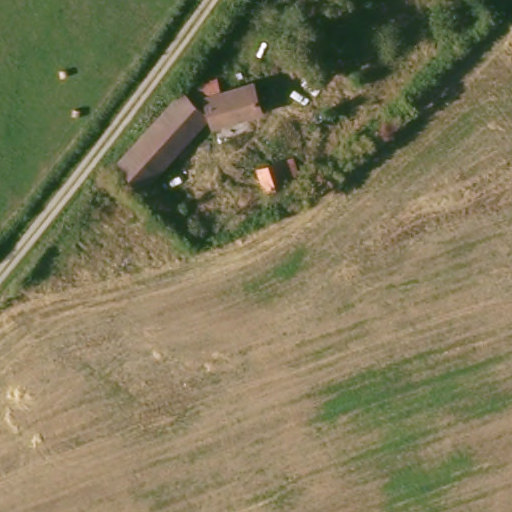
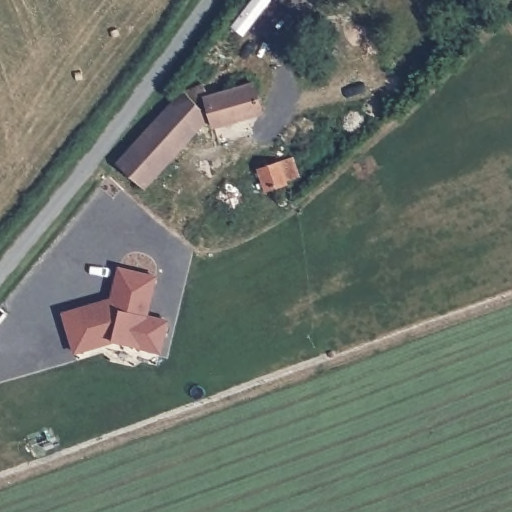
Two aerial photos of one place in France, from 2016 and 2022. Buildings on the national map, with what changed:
unchanged [(258,115),(211,125),(204,118),(138,187),(114,165),(176,92),(198,82),(204,94),(248,85),(258,115)]
unchanged [(286,183),(268,189),(260,167),(278,160),(286,183)]
new [(157,276),(149,315),(168,320),(162,353),(113,339),(74,352),(63,312),(111,298),(120,267),(157,276)]

